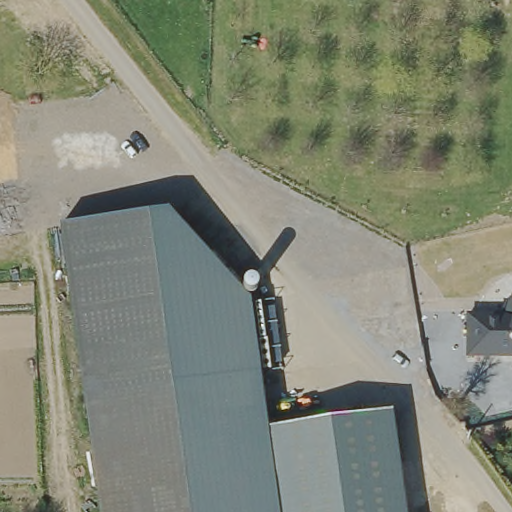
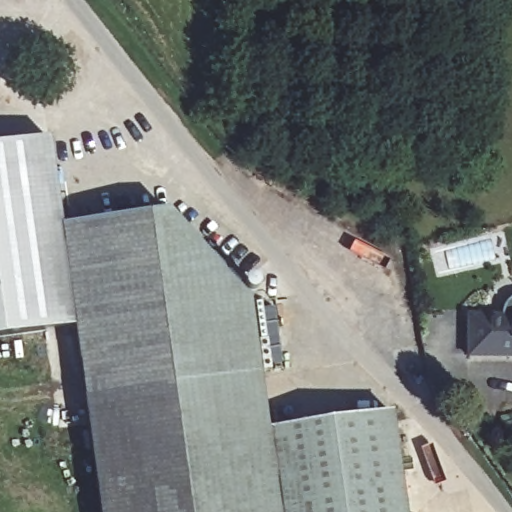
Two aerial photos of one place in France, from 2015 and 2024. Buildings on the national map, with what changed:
new [(76,327),(0,338),(0,143),(51,137),(63,220),(76,327)]
unchanged [(171,208),(248,293),(256,383),(85,406),(63,220),(171,208)]
unchanged [(505,301),(510,297),(512,296),(512,355),(467,356),(467,314),(501,312),(505,301)]
unchanged [(265,382),(271,381),(277,425),(347,415),(359,512),(273,512),(256,383),(265,382)]
unchanged [(256,383),(273,512),(100,512),(85,406),(256,383)]
unchanged [(414,512),(359,512),(347,415),(398,408),(414,512)]

